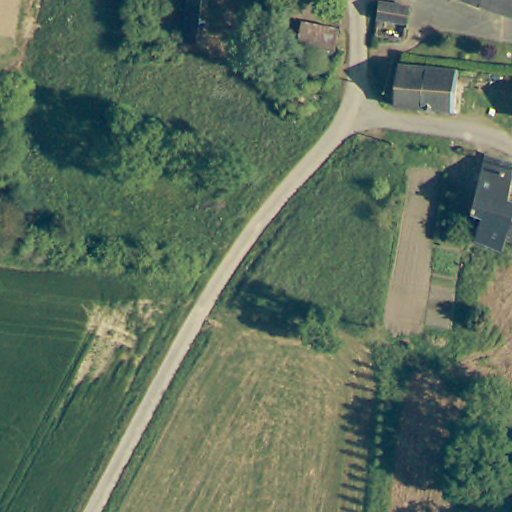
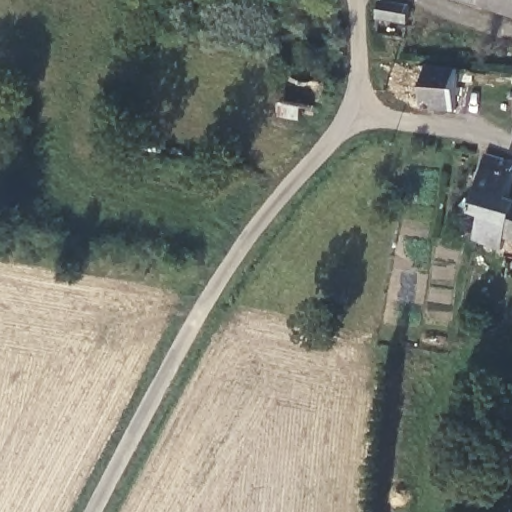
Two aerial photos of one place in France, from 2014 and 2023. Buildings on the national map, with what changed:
unchanged [(512,18),(463,0),(512,0),(512,18)]
unchanged [(382,5),(406,8),(405,25),(380,21),(382,5)]
unchanged [(454,113),(399,108),(402,67),(456,72),(454,113)]
unchanged [(478,159),(479,154),(509,158),(509,164),(510,198),(512,199),(512,247),(498,242),(497,247),(476,237),(479,217),(470,213),(478,159)]
unchanged [(512,401),(512,415),(499,413),(500,399),(512,401)]

